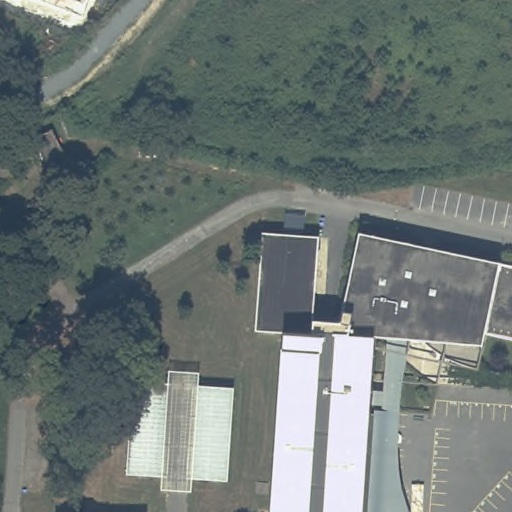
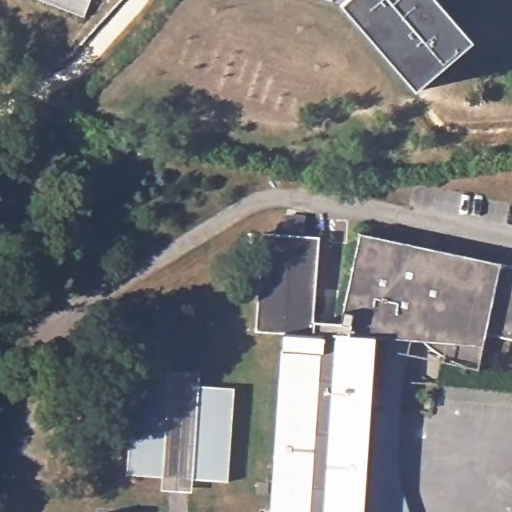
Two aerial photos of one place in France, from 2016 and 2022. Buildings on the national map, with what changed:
unchanged [(90,0),(83,17),(37,0),(90,0)]
new [(418,84),(346,0),(444,0),(475,35),(418,84)]
unchanged [(12,156),(26,149),(33,162),(19,170),(12,156)]
unchanged [(1,158),(13,181),(0,188),(0,158),(1,158)]
unchanged [(402,384),(398,412),(398,437),(399,465),(403,489),(409,512),(372,512),(385,344),(411,346),(402,384)]
unchanged [(132,383),(167,385),(168,373),(199,375),(198,386),(234,389),(234,406),(227,484),(191,481),(190,494),(159,492),(159,480),(124,475),(132,383)]

